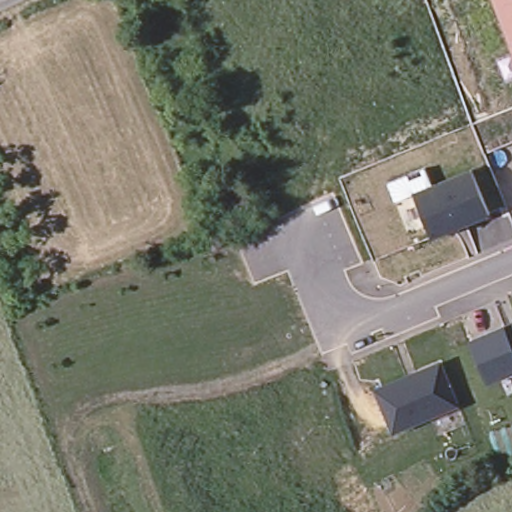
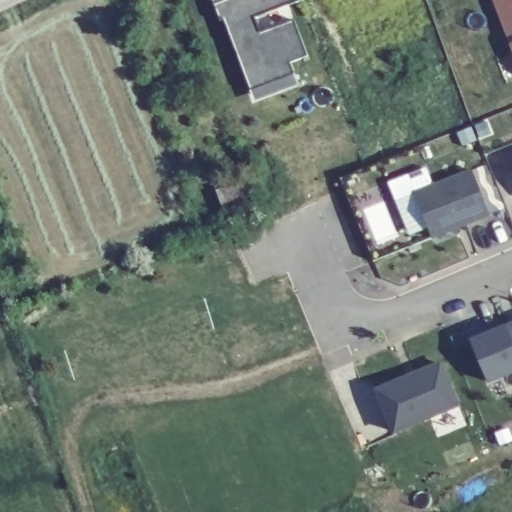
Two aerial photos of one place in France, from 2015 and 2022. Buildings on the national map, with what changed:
new [(224,20),(220,21),(213,5),(212,0),(299,0),(254,17),(260,34),(293,21),(307,55),(287,61),(292,73),(294,72),(299,85),(255,101),(224,20)]
unchanged [(493,0),(512,0),(512,50),(493,0)]
unchanged [(414,193),(472,171),(491,217),(432,239),(414,193)]
unchanged [(237,187),(245,208),(222,217),(214,196),(237,187)]
unchanged [(490,384),(471,340),(506,324),(512,322),(512,375),(490,384)]
unchanged [(394,434),(375,390),(442,362),(459,407),(394,434)]

